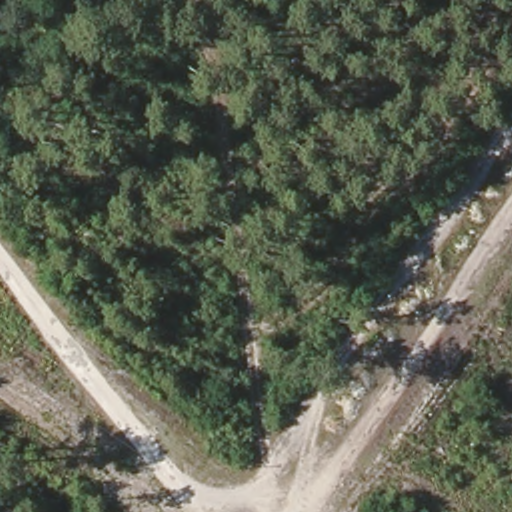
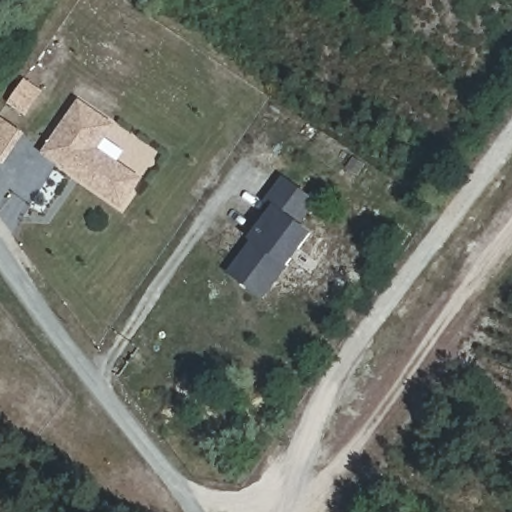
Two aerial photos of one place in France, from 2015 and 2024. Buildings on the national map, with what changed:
new [(45,153),(79,104),(111,126),(94,150),(138,180),(121,206),(81,178),(74,173),(45,153)]
new [(299,225),(310,234),(262,297),(232,272),(263,232),(260,229),(275,209),(268,204),(285,179),(316,202),(299,225)]

